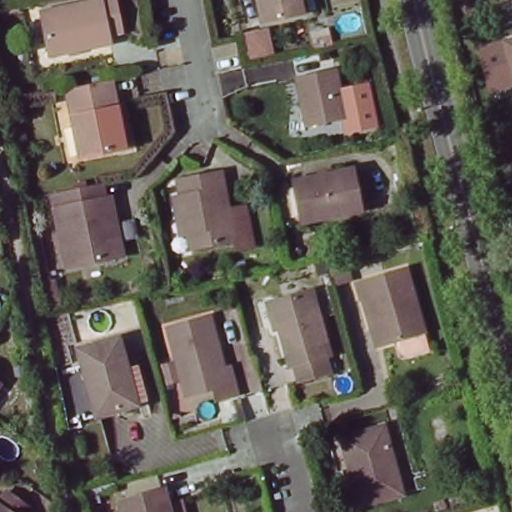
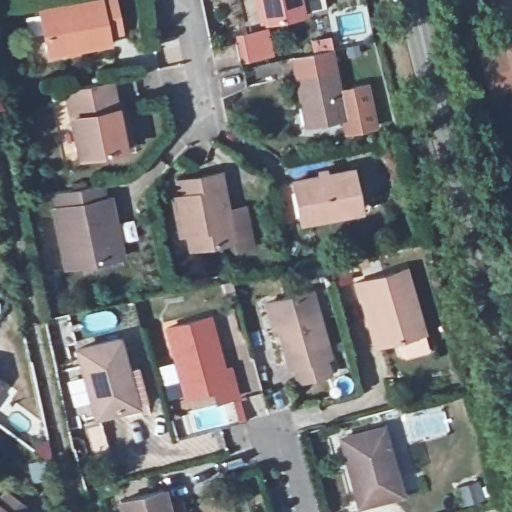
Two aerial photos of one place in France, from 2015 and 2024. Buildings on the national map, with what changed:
unchanged [(121,31),(107,33),(109,41),(49,54),(40,11),(94,0),(115,0),(121,31)]
unchanged [(261,20),(257,0),(304,0),(306,11),(261,20)]
unchanged [(478,49),(512,40),(512,83),(489,89),(478,49)]
unchanged [(296,78),(334,70),(344,116),(312,123),(308,107),(303,108),(296,78)]
unchanged [(130,145),(78,155),(65,87),(111,78),(118,115),(124,113),(130,145)]
unchanged [(171,192),(180,190),(177,175),(219,167),(227,203),(245,199),(253,239),(235,243),(233,234),(191,242),(188,227),(179,228),(171,192)]
unchanged [(360,209),(301,221),(293,180),(352,168),(360,209)]
unchanged [(111,222),(114,221),(122,255),(67,267),(50,192),(102,182),(111,222)]
unchanged [(302,251),(296,260),(285,253),(290,244),(302,251)]
unchanged [(408,344),(404,332),(382,338),(375,340),(361,293),(356,278),(405,263),(424,326),(420,327),(424,340),(408,344)]
unchanged [(65,288),(71,311),(55,314),(50,291),(65,288)]
unchanged [(329,354),(324,355),(329,371),(297,380),(293,365),(289,366),(279,330),(272,332),(264,303),(270,301),(311,289),(329,354)]
unchanged [(221,399),(218,387),(190,395),(186,379),(173,382),(168,365),(181,362),(171,327),(213,315),(228,368),(233,366),(238,382),(241,393),(221,399)]
unchanged [(131,406),(95,415),(77,348),(118,336),(127,370),(137,404),(131,406)]
unchanged [(4,382),(0,388),(0,379),(4,382)]
unchanged [(383,426),(401,493),(359,504),(348,464),(353,463),(346,436),(383,426)]
unchanged [(170,512),(122,512),(118,500),(163,488),(170,512)]
unchanged [(1,501),(10,489),(33,506),(29,512),(0,512),(0,500),(1,501)]

